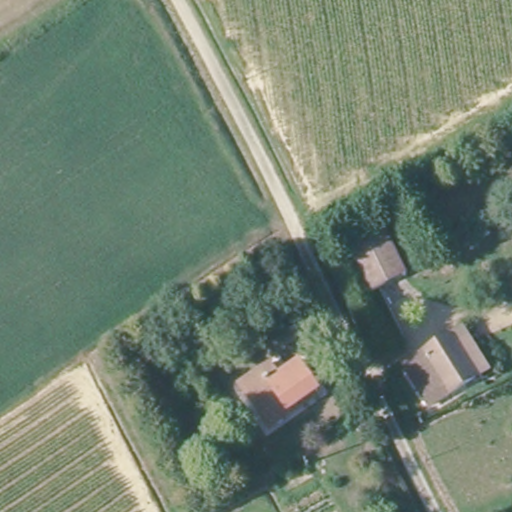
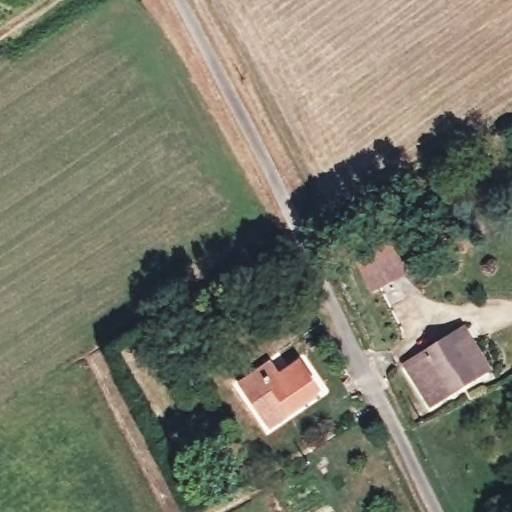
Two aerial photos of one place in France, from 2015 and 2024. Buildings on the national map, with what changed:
unchanged [(368,295),(344,246),(383,226),(406,273),(368,295)]
unchanged [(405,359),(454,332),(469,325),(492,367),(477,375),(427,403),(405,359)]
unchanged [(324,381),(272,416),(245,373),(276,352),(284,365),(305,352),(324,381)]

